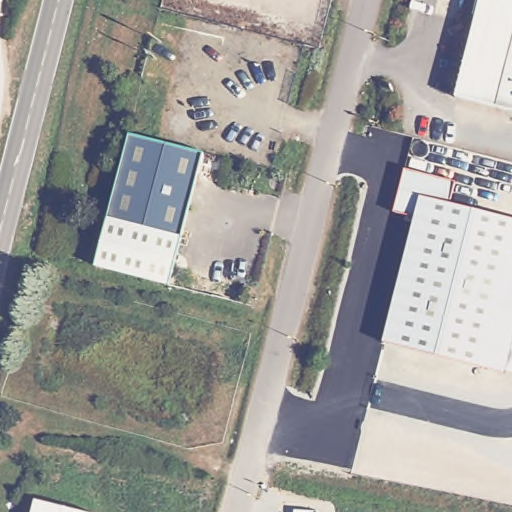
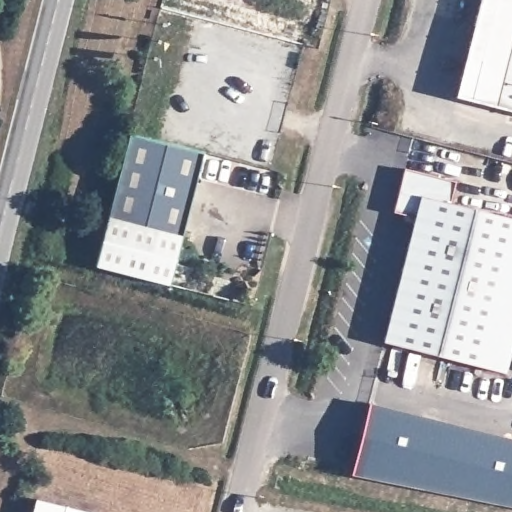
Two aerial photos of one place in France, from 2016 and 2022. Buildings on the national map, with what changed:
unchanged [(512,112),(455,98),(480,0),(512,0),(512,112)]
unchanged [(130,135),(205,154),(183,237),(172,286),(96,268),(108,219),(130,135)]
unchanged [(385,345),(416,220),(395,215),(406,171),(457,184),(452,205),(512,220),(512,291),(492,372),(385,345)]
unchanged [(492,372),(512,291),(512,355),(507,376),(492,372)]
new [(371,402),(512,438),(512,509),(351,476),(371,402)]
unchanged [(92,512),(31,512),(37,489),(95,503),(92,512)]

